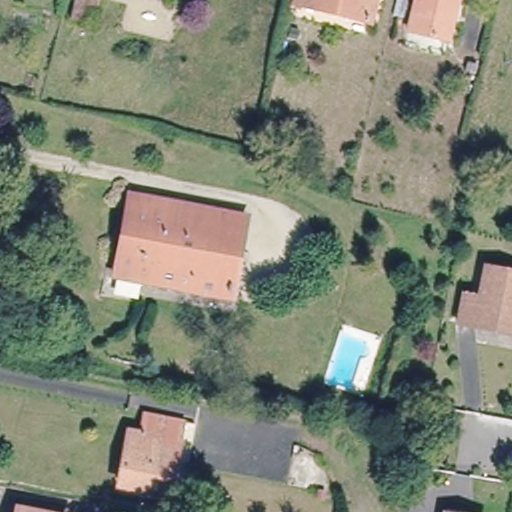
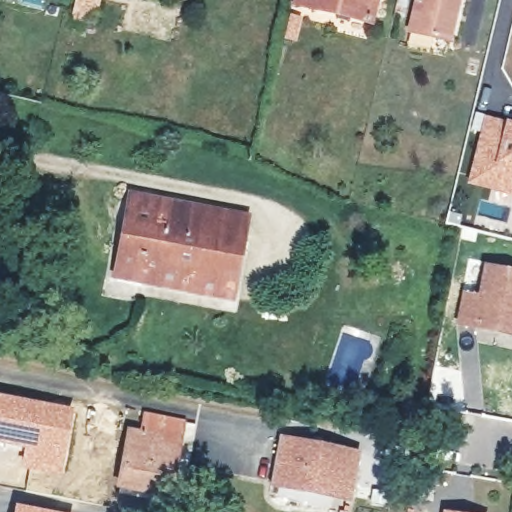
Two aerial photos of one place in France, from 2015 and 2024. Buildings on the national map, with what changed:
unchanged [(98,0),(93,22),(74,18),(78,0),(98,0)]
unchanged [(300,0),(381,0),(376,19),(300,0)]
unchanged [(460,0),(449,41),(410,31),(418,0),(460,0)]
unchanged [(472,58),(481,60),(476,75),(467,72),(472,58)]
new [(483,115),(512,122),(512,196),(465,185),(483,115)]
unchanged [(130,195),(248,216),(234,298),(114,276),(130,195)]
unchanged [(465,295),(480,298),(487,267),(512,272),(512,333),(459,322),(465,295)]
new [(63,478),(20,471),(25,449),(0,445),(0,395),(75,410),(63,478)]
unchanged [(173,451),(163,502),(116,493),(126,443),(135,443),(139,425),(139,422),(177,430),(177,432),(173,451)]
new [(280,439),(342,451),(334,495),(271,482),(280,439)]
unchanged [(19,506),(45,512),(17,512),(19,506)]
unchanged [(448,508),(473,512),(447,512),(448,508)]

